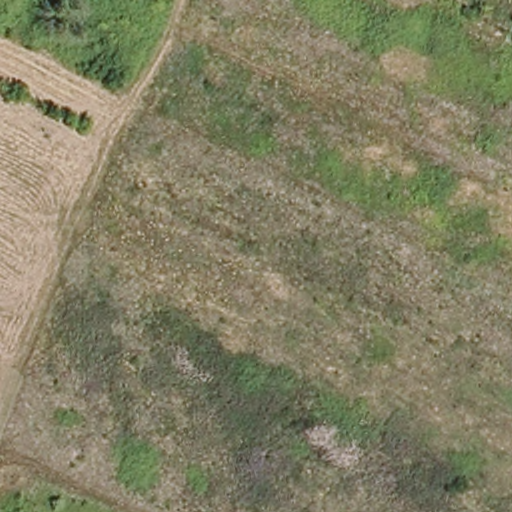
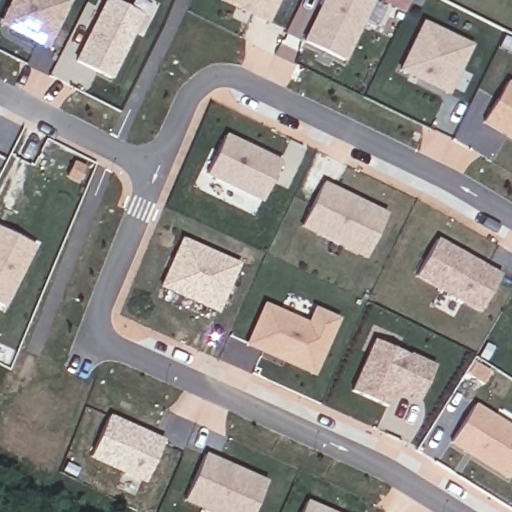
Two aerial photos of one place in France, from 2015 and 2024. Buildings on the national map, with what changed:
new [(11,24),(23,0),(72,0),(80,4),(56,51),(22,34),(10,27),(11,24)]
new [(115,81),(81,64),(114,0),(118,0),(149,15),(115,81)]
new [(270,23),(225,2),(226,0),(282,0),(270,23)]
new [(347,63),(309,44),(330,0),(377,0),(378,0),(347,63)]
new [(452,95),(405,71),(428,24),(475,46),(452,95)]
new [(510,83),(512,84),(512,137),(487,124),(510,83)]
new [(229,137),(286,165),(267,204),(210,175),(229,137)]
new [(370,258),(306,228),(327,185),(390,216),(370,258)]
new [(1,228),(39,247),(7,308),(0,305),(0,230),(1,228)]
new [(221,313),(166,288),(186,241),(243,266),(221,313)]
new [(485,314),(420,278),(441,241),(505,277),(485,314)]
new [(318,376),(251,345),(269,306),(312,326),(319,312),(342,322),(318,376)]
new [(401,387),(391,409),(356,393),(380,341),(440,368),(425,401),(408,394),(400,390),(401,387)]
new [(512,479),(455,444),(478,406),(512,427),(512,479)]
new [(150,485),(95,459),(112,418),(169,444),(150,485)]
new [(211,512),(188,501),(209,456),(271,485),(259,512),(211,512)]
new [(329,512),(308,512),(311,504),(329,512)]

